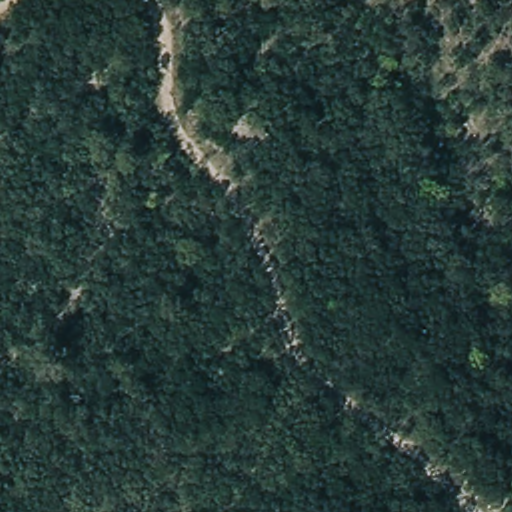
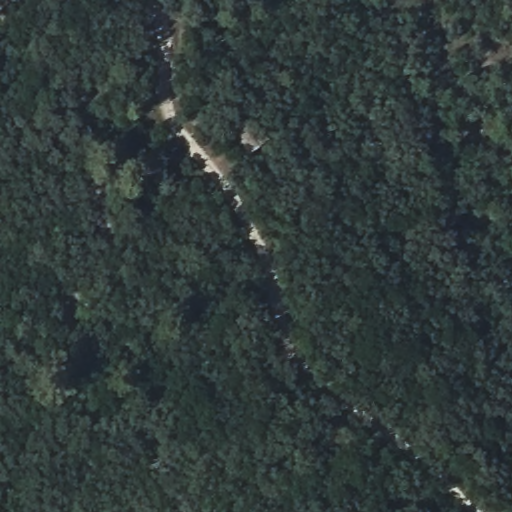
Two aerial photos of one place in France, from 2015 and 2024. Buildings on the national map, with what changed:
unchanged [(230,130),(241,119),(261,134),(250,148),(230,130)]

